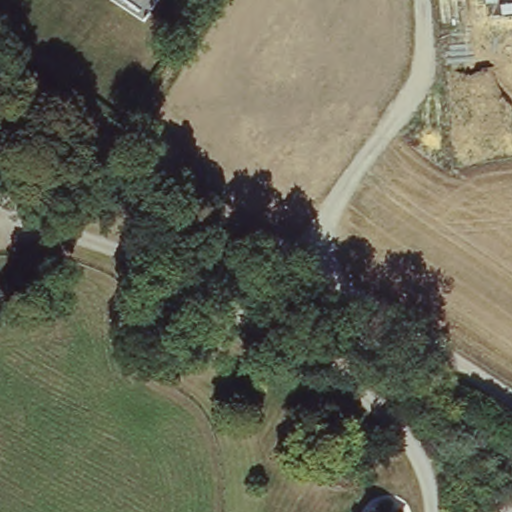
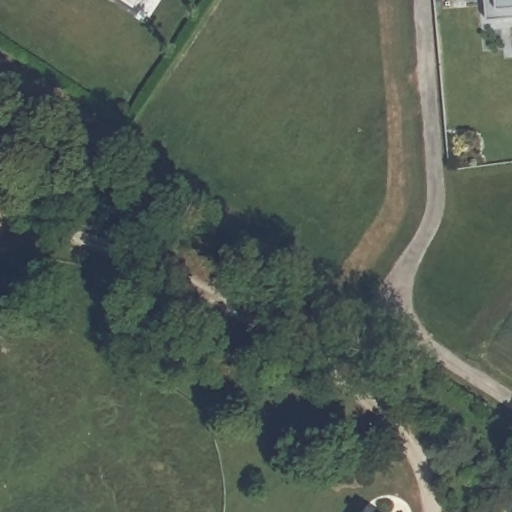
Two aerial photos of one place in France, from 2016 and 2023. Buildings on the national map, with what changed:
unchanged [(110,0),(153,0),(141,20),(110,0)]
new [(488,17),(487,0),(512,0),(512,15),(488,17)]

